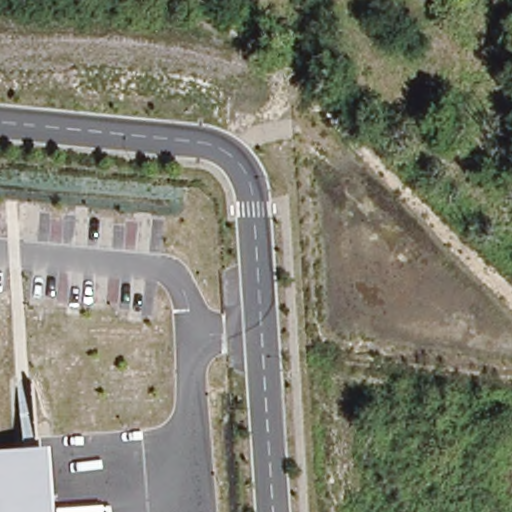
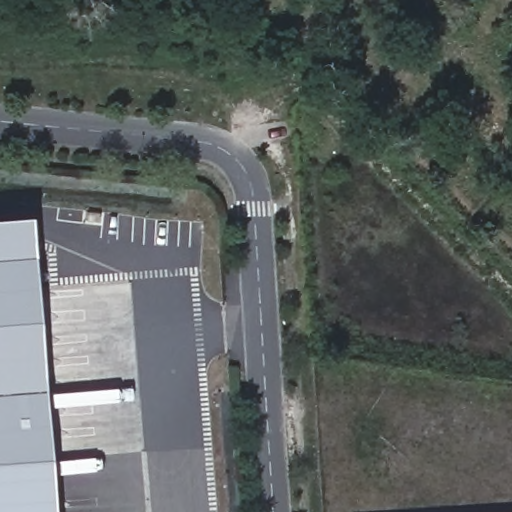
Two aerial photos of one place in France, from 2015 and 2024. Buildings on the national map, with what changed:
new [(47,450),(0,453),(0,219),(28,217),(47,450)]
unchanged [(0,453),(49,450),(54,512),(0,512),(0,453)]

